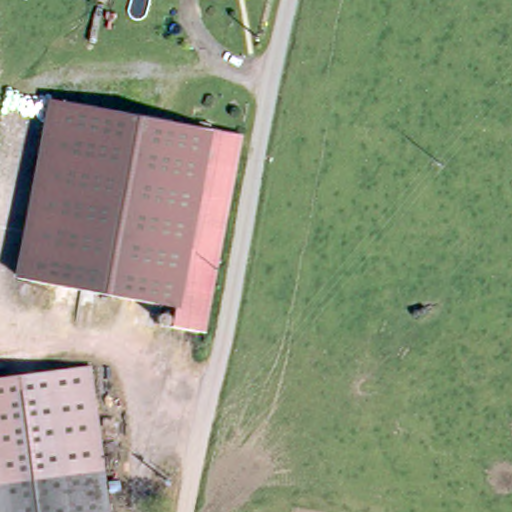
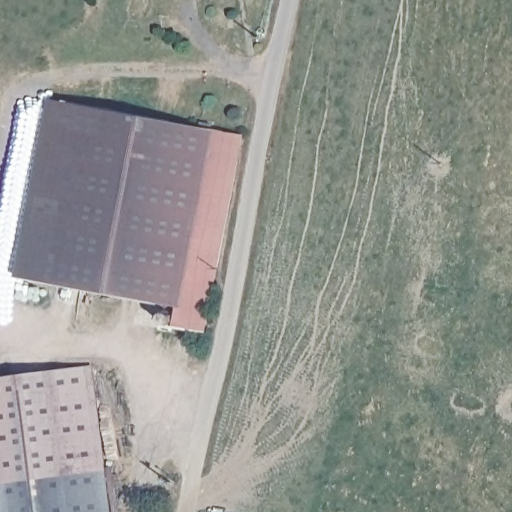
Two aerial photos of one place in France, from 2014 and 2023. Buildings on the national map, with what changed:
unchanged [(189,308),(37,287),(61,108),(214,130),(189,308)]
unchanged [(214,130),(241,133),(213,334),(186,330),(189,308),(214,130)]
unchanged [(95,372),(109,468),(0,487),(0,388),(95,372)]
unchanged [(109,468),(115,512),(0,512),(0,487),(109,468)]

